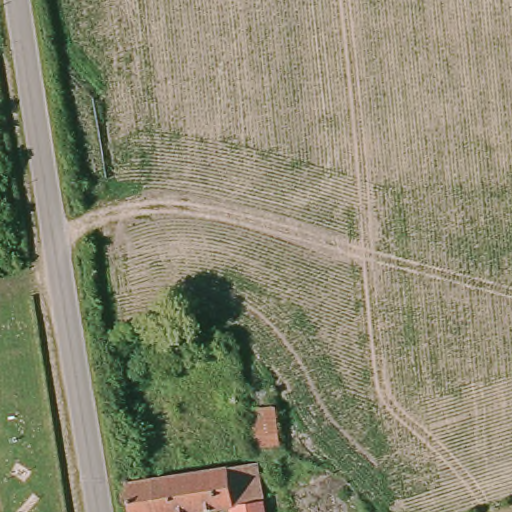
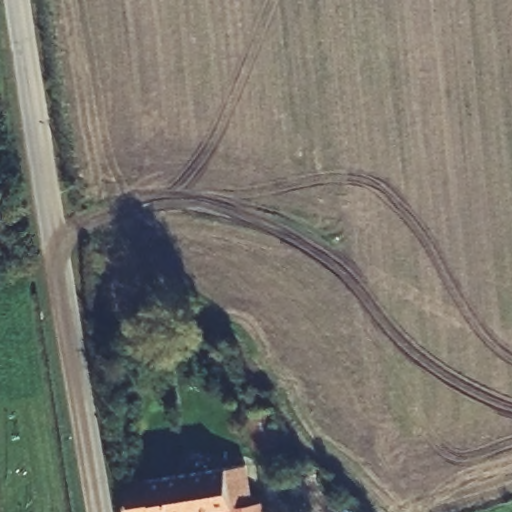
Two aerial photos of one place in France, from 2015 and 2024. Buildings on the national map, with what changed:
unchanged [(253,414),(252,399),(272,397),(273,412),(277,449),(258,452),(253,414)]
unchanged [(128,509),(125,488),(235,471),(250,469),(253,468),(258,468),(260,483),(258,483),(263,512),(229,512),(129,512),(128,509)]

